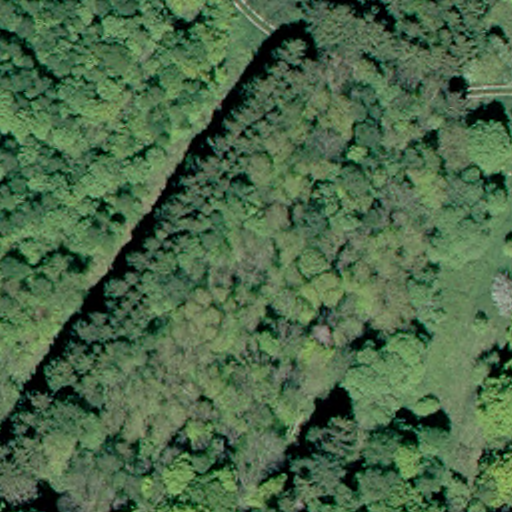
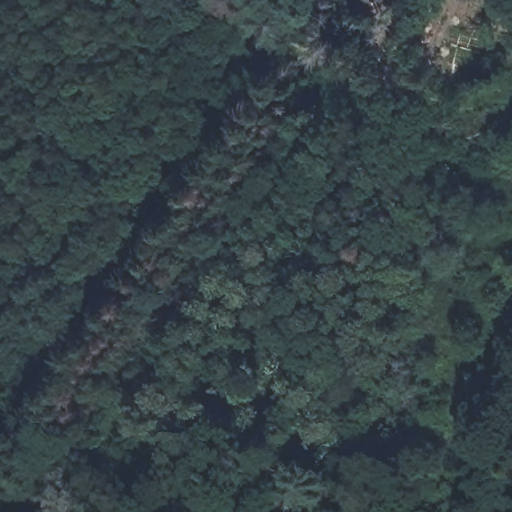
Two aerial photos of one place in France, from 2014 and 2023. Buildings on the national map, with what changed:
[]

